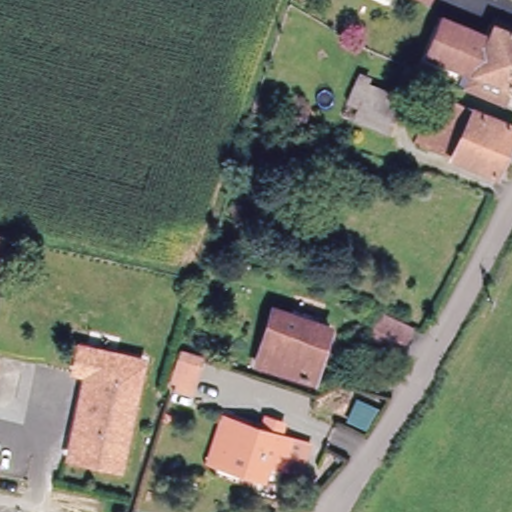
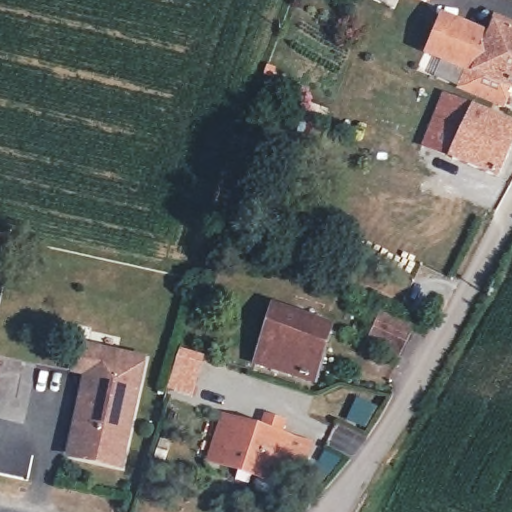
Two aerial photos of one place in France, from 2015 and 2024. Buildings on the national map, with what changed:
unchanged [(512,98),(425,63),(441,25),(486,46),(491,37),(483,32),(489,23),(512,33),(512,98)]
unchanged [(459,156),(423,142),(430,119),(443,123),(451,102),(477,110),(459,156)]
unchanged [(477,110),(512,122),(512,149),(503,172),(459,156),(477,110)]
unchanged [(4,248),(0,266),(0,247),(4,248)]
unchanged [(257,367),(277,312),(333,332),(318,376),(322,377),(318,390),(257,367)]
unchanged [(392,316),(430,338),(415,366),(376,343),(392,316)]
unchanged [(67,375),(76,342),(147,357),(136,392),(81,380),(67,375)]
unchanged [(181,393),(182,387),(172,382),(174,376),(182,350),(206,359),(191,397),(181,393)]
unchanged [(136,392),(117,468),(64,457),(81,380),(136,392)]
unchanged [(272,472),(258,467),(254,481),(211,467),(225,422),(282,441),(300,447),(290,478),(272,472)]

